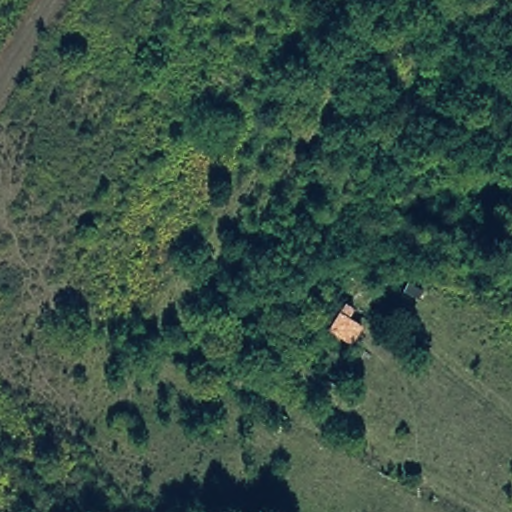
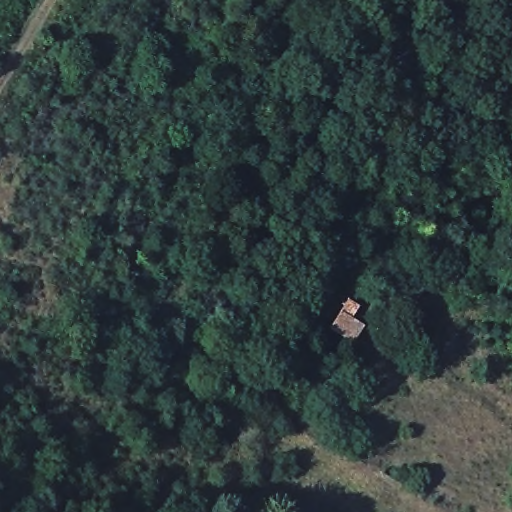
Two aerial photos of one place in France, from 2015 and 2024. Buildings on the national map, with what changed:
unchanged [(358,308),(350,316),(363,325),(353,343),(327,330),(347,303),(358,308)]

